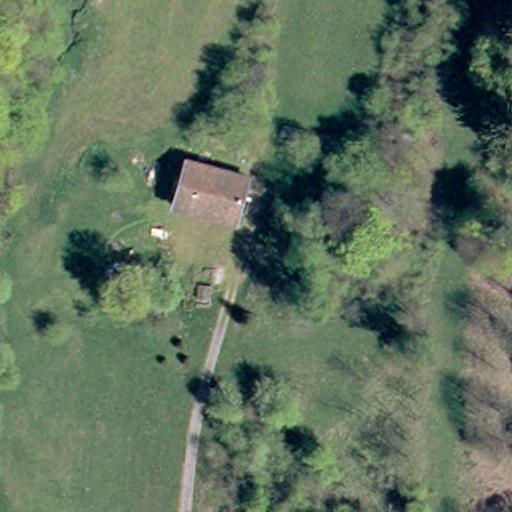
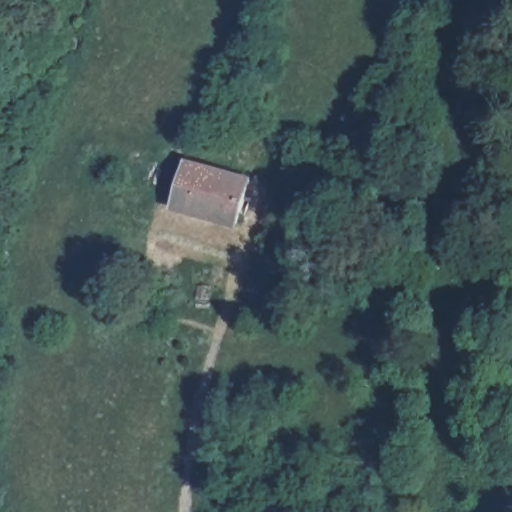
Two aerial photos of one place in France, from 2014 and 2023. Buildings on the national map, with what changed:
unchanged [(191,163),(254,181),(240,226),(177,209),(191,163)]

